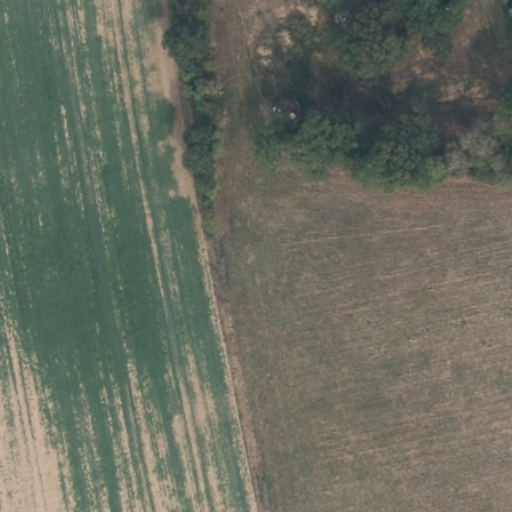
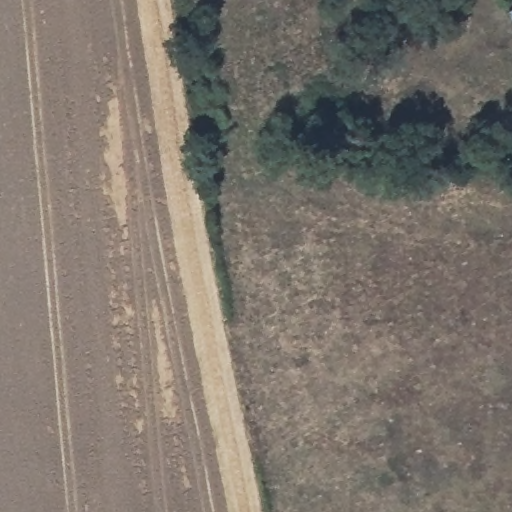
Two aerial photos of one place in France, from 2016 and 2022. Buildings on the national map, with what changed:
unchanged [(512,10),(512,19),(508,12),(512,10)]

